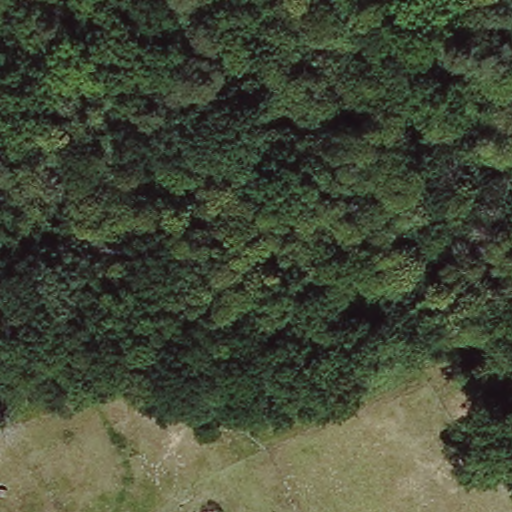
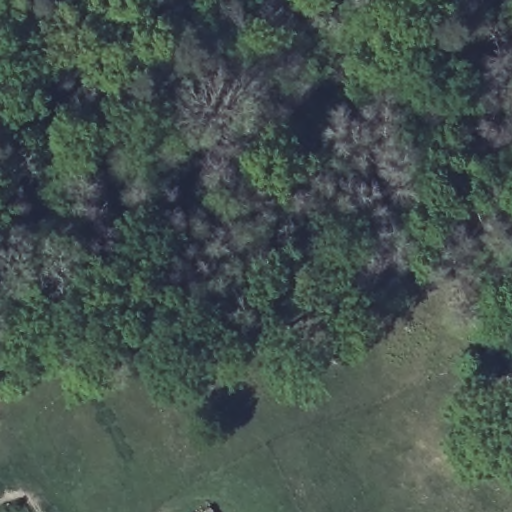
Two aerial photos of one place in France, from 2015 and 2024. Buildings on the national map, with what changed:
unchanged [(213,512),(212,512),(213,511),(213,512)]

